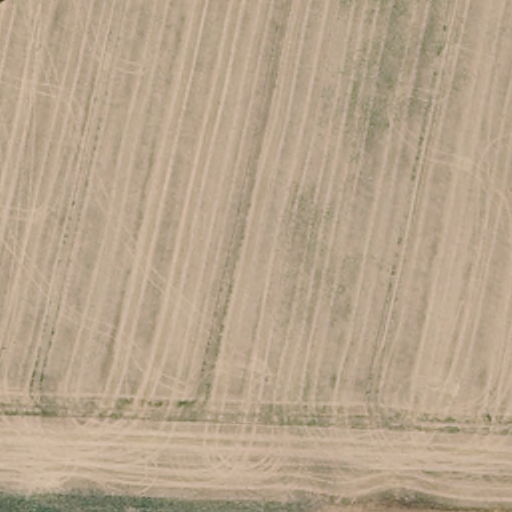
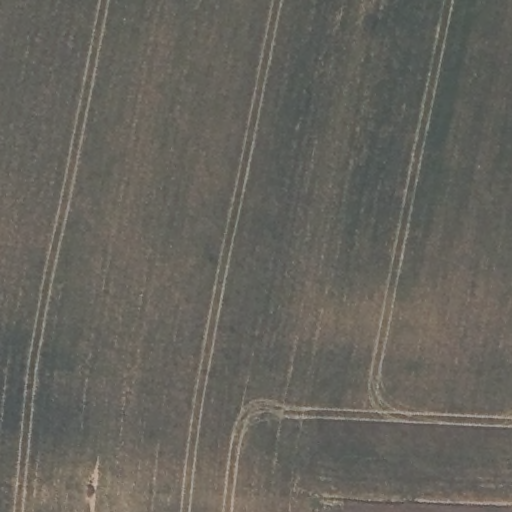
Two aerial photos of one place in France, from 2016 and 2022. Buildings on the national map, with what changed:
[]

